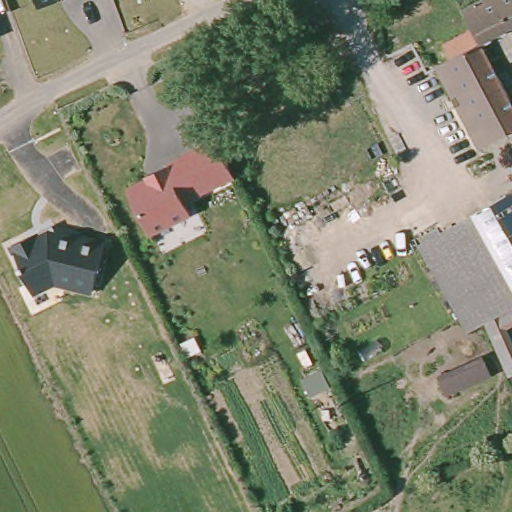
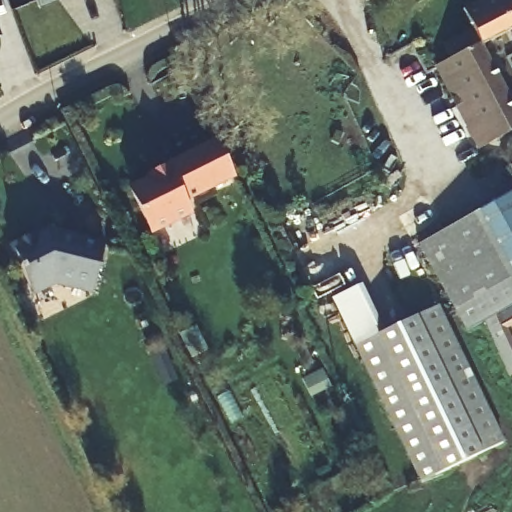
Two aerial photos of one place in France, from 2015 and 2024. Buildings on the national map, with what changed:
unchanged [(38,5),(37,0),(54,0),(38,5)]
unchanged [(479,46),(512,120),(512,132),(477,150),(457,109),(437,67),(448,62),(442,47),(470,34),(461,11),(485,0),(512,0),(512,30),(479,46)]
unchanged [(190,214),(150,233),(129,190),(148,180),(147,176),(165,167),(215,141),(228,167),(233,177),(183,201),(190,214)]
unchanged [(512,194),(512,307),(499,314),(482,324),(468,333),(427,258),(420,248),(483,210),(500,200),(512,194)]
unchanged [(47,229),(107,240),(95,290),(55,282),(32,292),(10,245),(47,229)]
new [(438,304),(505,442),(420,483),(355,345),(438,304)]
new [(499,314),(512,307),(512,327),(510,328),(512,334),(512,376),(507,377),(486,322),(499,314)]
demolished [(499,314),(512,344),(512,380),(508,381),(482,324),(499,314)]

